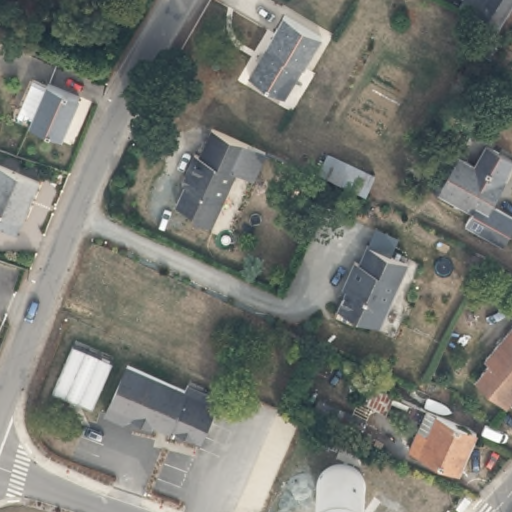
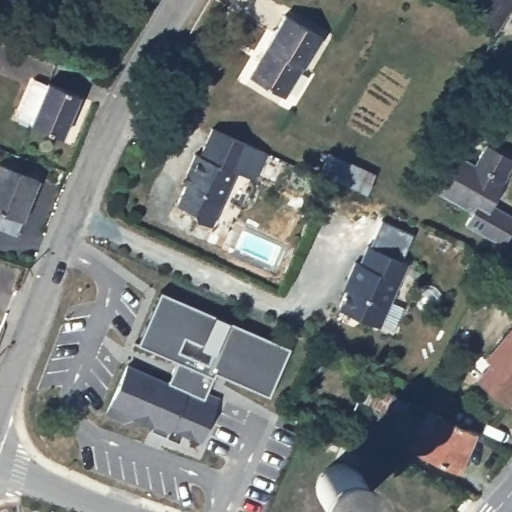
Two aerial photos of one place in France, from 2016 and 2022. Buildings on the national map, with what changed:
unchanged [(467,0),(512,0),(512,15),(501,35),(474,18),(461,10),(467,0)]
unchanged [(251,75),(284,13),(322,35),(288,97),(251,75)]
unchanged [(32,126),(33,124),(20,118),(34,81),(49,88),(50,85),(80,98),(64,139),(32,126)]
unchanged [(220,132),(256,149),(243,177),(207,159),(220,132)]
unchanged [(510,249),(488,238),(473,229),(480,216),(445,197),(435,192),(443,178),(456,155),(481,169),(493,149),(512,159),(512,179),(509,184),(512,185),(499,209),(512,217),(512,246),(511,248),(510,249)]
unchanged [(207,159),(243,177),(217,230),(203,224),(198,217),(183,209),(192,189),(188,187),(193,175),(203,156),(207,159)]
unchanged [(0,165),(39,182),(16,237),(0,230),(0,165)]
unchanged [(335,299),(348,271),(344,269),(352,253),(357,254),(366,236),(405,254),(375,318),(335,299)]
new [(176,361),(136,343),(160,289),(290,347),(269,397),(214,373),(206,389),(190,383),(188,388),(168,379),(176,361)]
unchanged [(482,385),(494,371),(486,364),(512,332),(512,404),(510,407),(482,385)]
demolished [(93,409),(52,393),(71,346),(111,362),(93,409)]
unchanged [(174,425),(172,429),(155,423),(154,425),(134,417),(126,421),(108,413),(129,364),(188,388),(190,383),(220,395),(202,437),(174,425)]
unchanged [(358,399),(365,382),(417,404),(410,420),(358,399)]
new [(319,399),(367,421),(362,432),(314,410),(319,399)]
unchanged [(416,450),(431,409),(482,432),(467,471),(416,450)]

